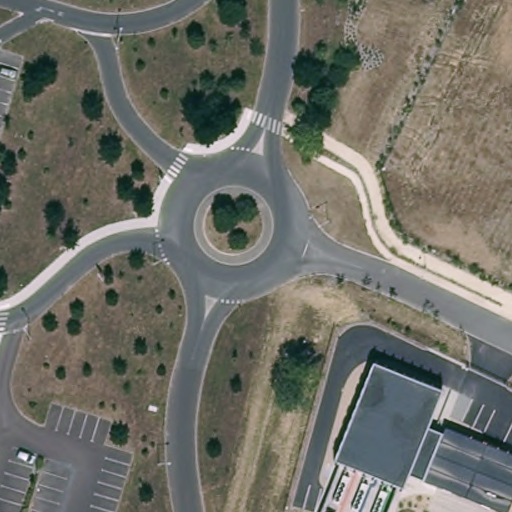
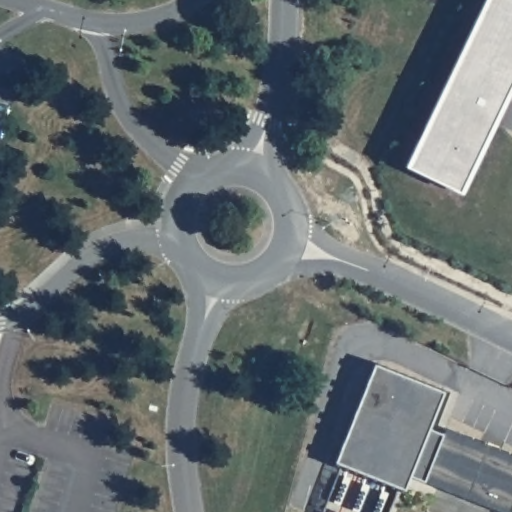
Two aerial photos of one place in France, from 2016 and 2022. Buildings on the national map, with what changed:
new [(512,0),(512,18),(490,8),(431,131),(432,138),(434,145),(438,150),(445,156),(452,158),(461,157),(468,155),(473,151),(504,90),(500,88),(512,66),(512,86),(460,194),(404,167),(484,0),(512,0)]
new [(512,18),(512,66),(500,88),(504,90),(473,151),(468,155),(461,157),(452,158),(445,156),(438,150),(434,145),(432,138),(431,131),(490,8),(512,18)]
unchanged [(442,392),(428,429),(441,436),(444,430),(512,457),(512,503),(509,512),(500,512),(424,482),(409,476),(402,491),(335,463),(373,365),(442,392)]

